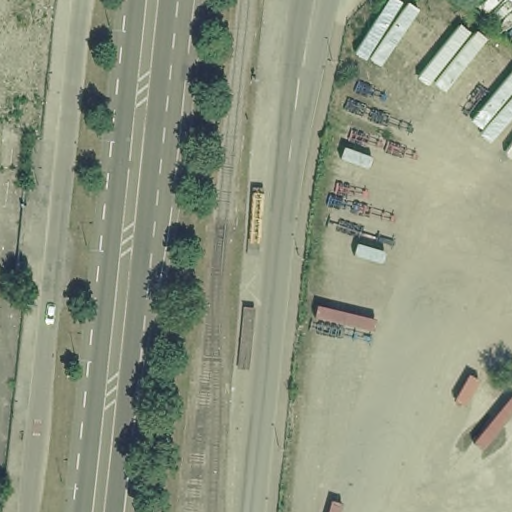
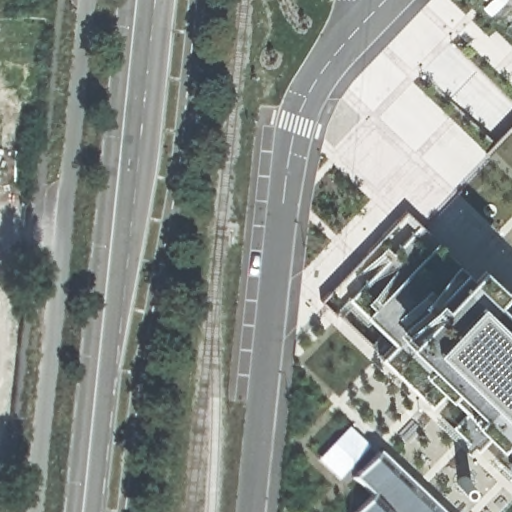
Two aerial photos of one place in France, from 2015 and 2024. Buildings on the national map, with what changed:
new [(17,262),(28,263),(26,283),(15,282),(17,262)]
new [(446,280),(512,340),(512,473),(383,352),(446,280)]
new [(368,490),(348,472),(373,444),(439,512),(347,512),(368,490)]

